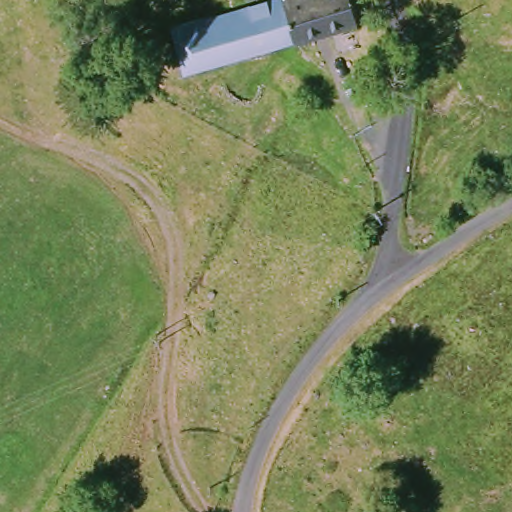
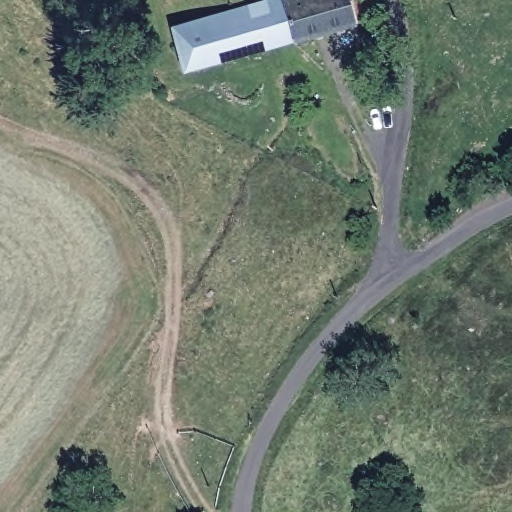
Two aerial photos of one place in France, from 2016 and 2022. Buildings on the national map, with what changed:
unchanged [(183,76),(172,31),(168,11),(207,2),(212,20),(287,0),(293,0),(305,43),(183,76)]
unchanged [(305,43),(293,0),(349,0),(350,2),(360,0),(370,0),(377,23),(305,43)]

